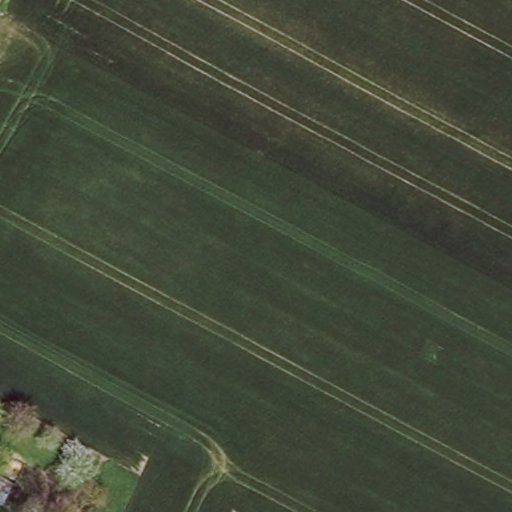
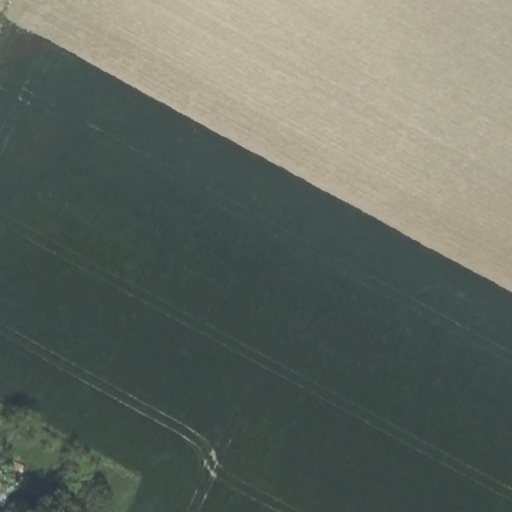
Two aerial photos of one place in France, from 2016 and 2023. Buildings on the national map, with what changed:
[]

